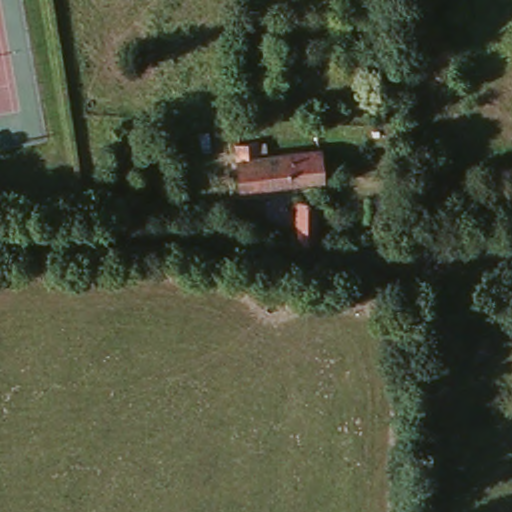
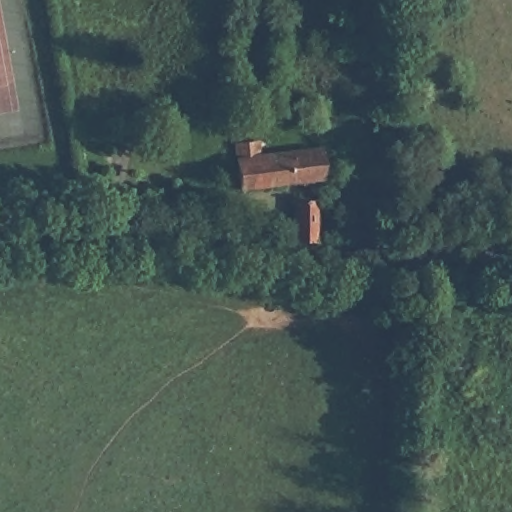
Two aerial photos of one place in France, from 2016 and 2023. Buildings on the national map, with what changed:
unchanged [(255,146),(257,161),(317,157),(320,184),(239,193),(230,147),(255,146)]
unchanged [(290,239),(295,197),(311,199),(310,240),(290,239)]

